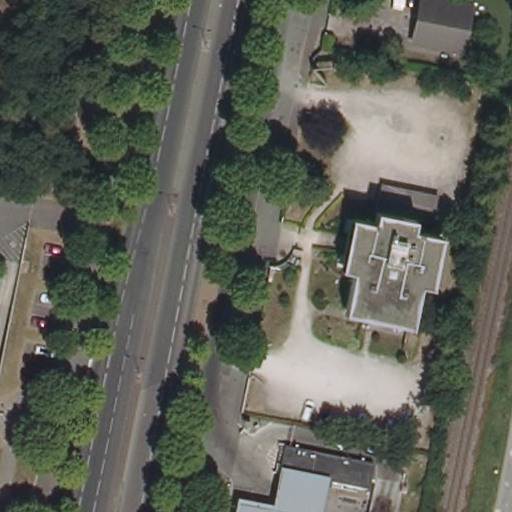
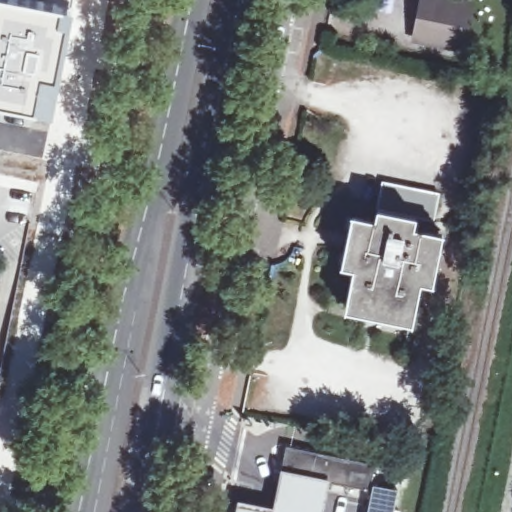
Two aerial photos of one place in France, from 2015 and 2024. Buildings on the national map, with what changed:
new [(60,0),(74,4),(52,111),(0,102),(0,0),(60,0)]
unchanged [(475,8),(473,29),(470,52),(420,46),(426,1),(451,5),(475,8)]
unchanged [(406,224),(366,217),(371,188),(427,198),(422,227),(406,224)]
unchanged [(406,224),(404,235),(428,240),(418,290),(410,289),(404,327),(337,313),(343,278),(337,277),(346,225),(364,228),(366,217),(406,224)]
unchanged [(271,262),(276,263),(273,277),(268,276),(271,262)]
unchanged [(285,445),(374,463),(368,488),(328,481),(314,478),(309,480),(279,473),(280,467),(285,445)]
unchanged [(279,473),(309,480),(314,478),(328,481),(321,512),(233,512),(236,498),(250,501),(272,505),(279,473)]
new [(372,484),(396,489),(392,512),(366,512),(371,487),(372,484)]

